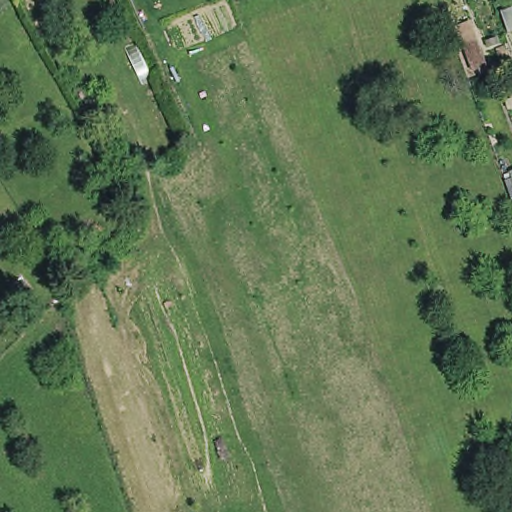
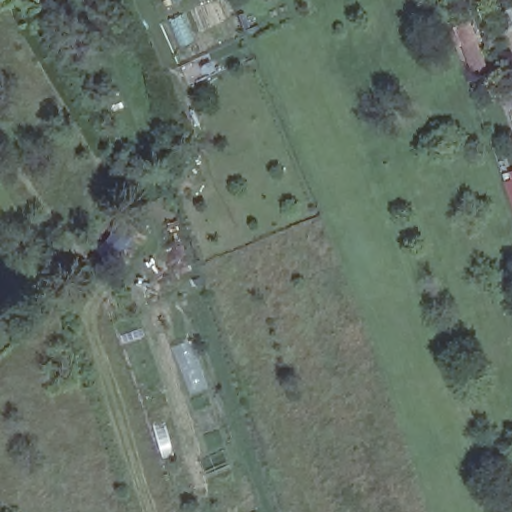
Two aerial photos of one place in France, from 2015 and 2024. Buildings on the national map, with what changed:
unchanged [(501,10),(512,6),(512,31),(509,32),(501,10)]

